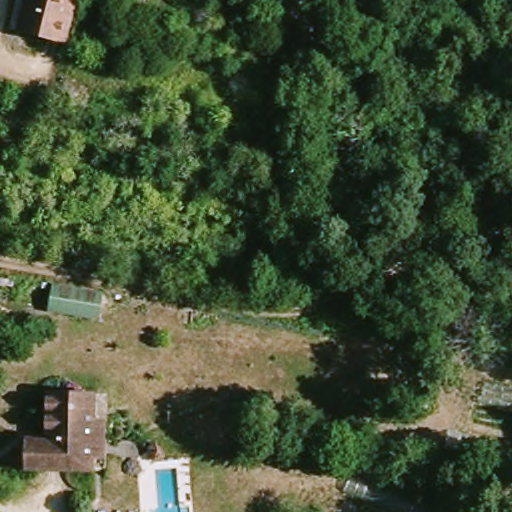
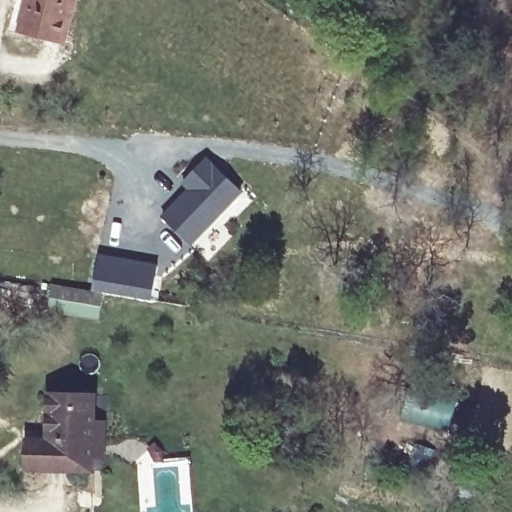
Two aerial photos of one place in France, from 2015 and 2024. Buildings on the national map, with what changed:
unchanged [(24,34),(27,0),(70,0),(67,39),(24,34)]
new [(189,190),(182,183),(204,159),(240,193),(190,246),(162,219),(180,199),(189,190)]
new [(97,258),(157,268),(151,302),(92,293),(97,258)]
unchanged [(97,388),(96,465),(37,463),(37,435),(55,435),(56,387),(97,388)]

